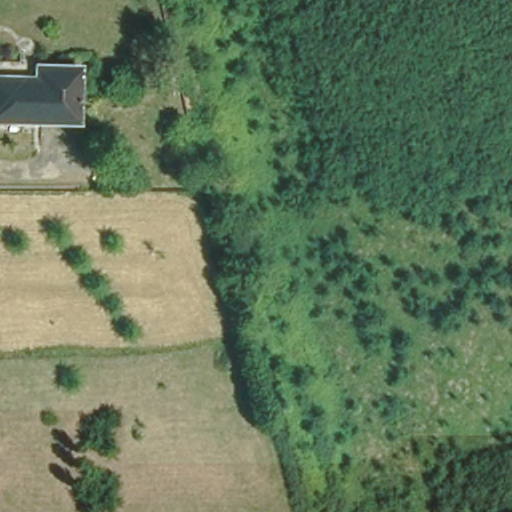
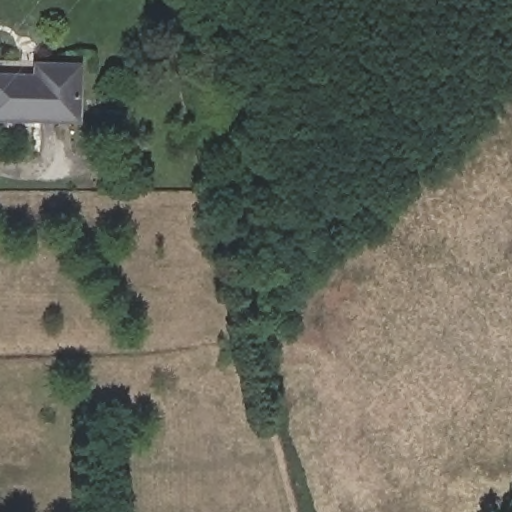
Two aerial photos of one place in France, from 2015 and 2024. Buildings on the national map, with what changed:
unchanged [(74,121),(0,118),(0,68),(76,72),(74,121)]

